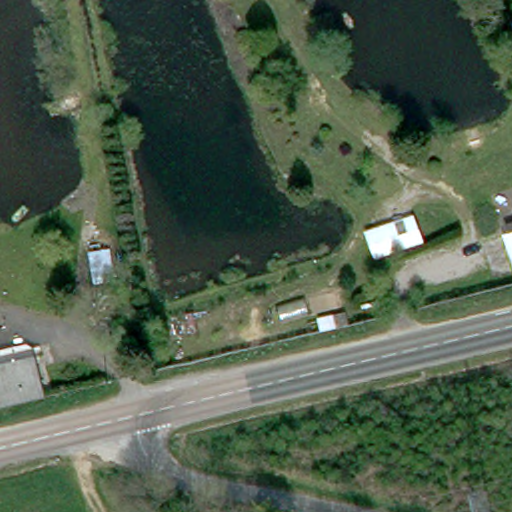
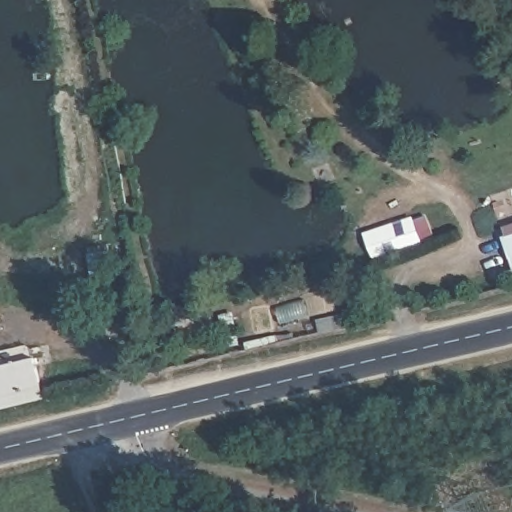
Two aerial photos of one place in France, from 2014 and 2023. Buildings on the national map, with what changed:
unchanged [(512,228),(512,253),(506,231),(512,228)]
unchanged [(45,388),(0,399),(0,370),(37,361),(45,388)]

